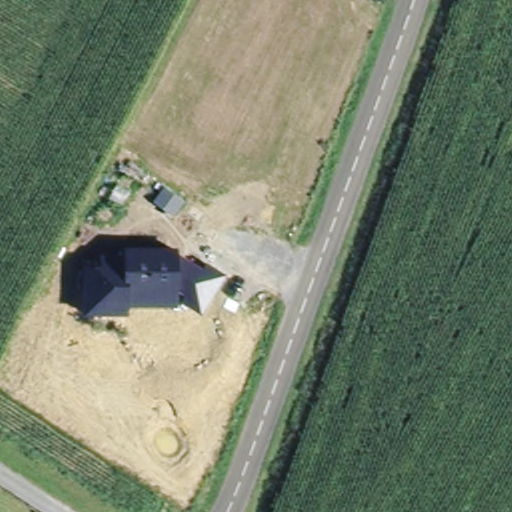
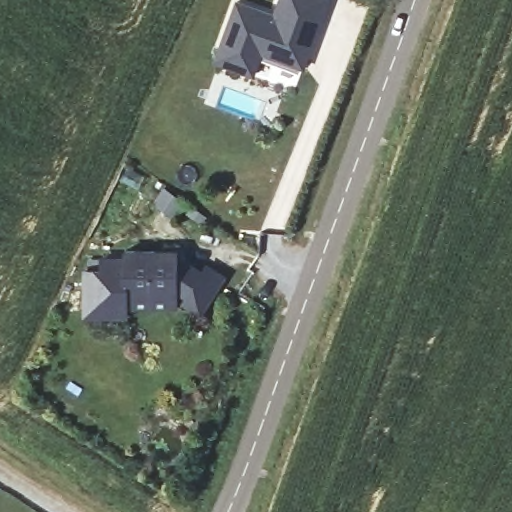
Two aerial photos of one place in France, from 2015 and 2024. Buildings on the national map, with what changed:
new [(236,2),(272,14),(278,0),(329,0),(305,71),(260,53),(252,76),(214,62),(236,2)]
unchanged [(121,253),(121,246),(176,246),(175,250),(202,266),(205,261),(225,274),(200,314),(176,299),(176,306),(127,305),(126,315),(81,314),(81,267),(97,266),(99,254),(121,253)]

